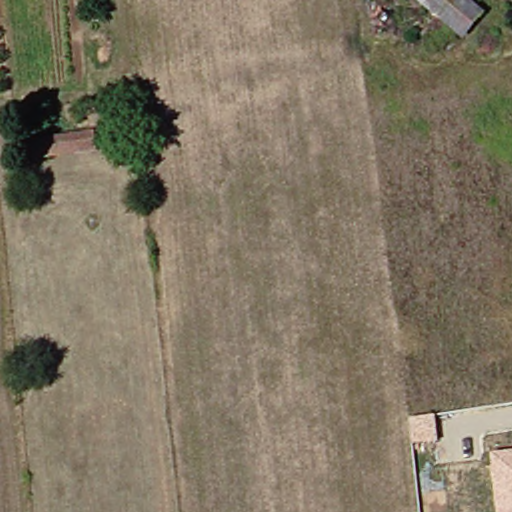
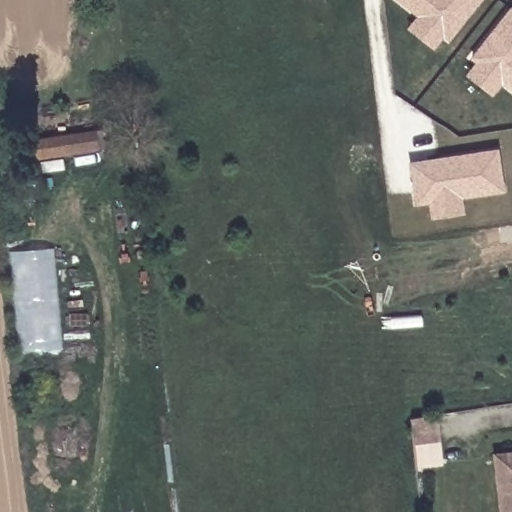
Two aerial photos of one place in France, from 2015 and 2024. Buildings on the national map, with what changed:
new [(406,27),(416,16),(395,0),(481,0),(448,42),(442,37),(432,50),(406,27)]
demolished [(408,0),(447,0),(436,15),(433,19),(428,16),(408,0)]
new [(475,63),(468,59),(510,6),(512,7),(512,92),(502,84),(491,97),(465,75),(475,63)]
unchanged [(95,152),(28,161),(25,143),(92,134),(95,152)]
new [(428,204),(415,206),(408,162),(497,148),(504,191),(462,197),(464,213),(430,219),(428,204)]
new [(10,252),(52,249),(62,350),(20,352),(10,252)]
unchanged [(512,452),(512,512),(497,512),(492,455),(512,452)]

